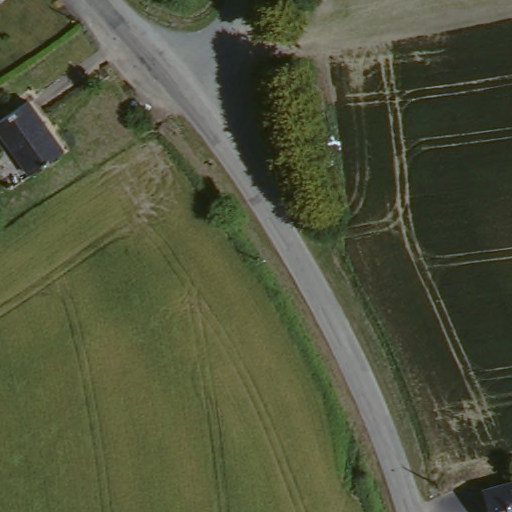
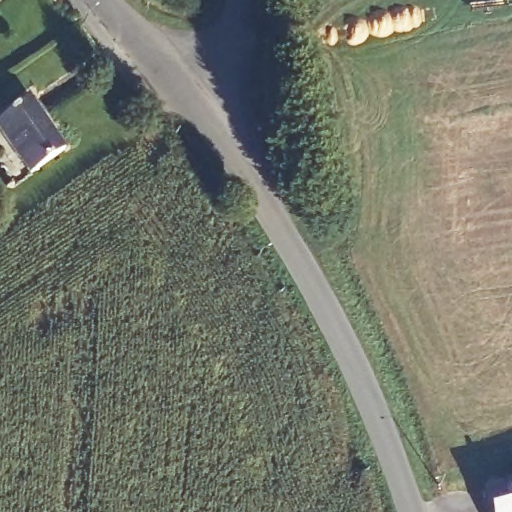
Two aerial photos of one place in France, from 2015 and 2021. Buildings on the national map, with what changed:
unchanged [(29,168),(0,130),(0,113),(25,95),(62,143),(29,168)]
unchanged [(477,490),(512,478),(512,512),(483,512),(477,490)]

